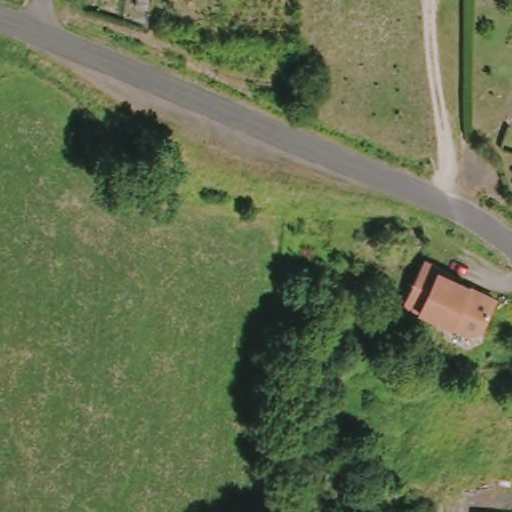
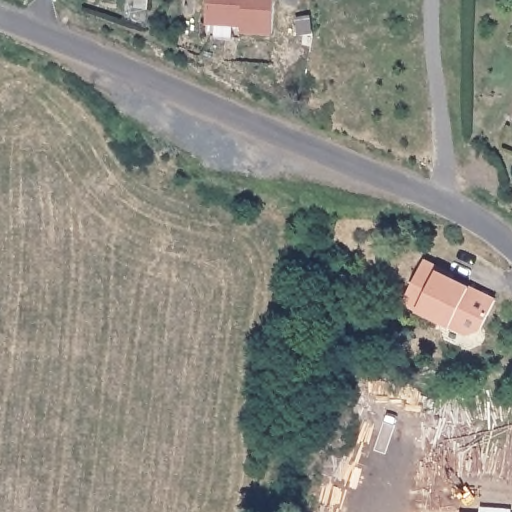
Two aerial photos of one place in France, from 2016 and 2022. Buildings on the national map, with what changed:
new [(243,25),(208,24),(209,0),(274,0),(271,34),(243,33),(243,25)]
unchanged [(452,279),(450,284),(494,307),(479,334),(466,339),(401,306),(422,265),(452,279)]

